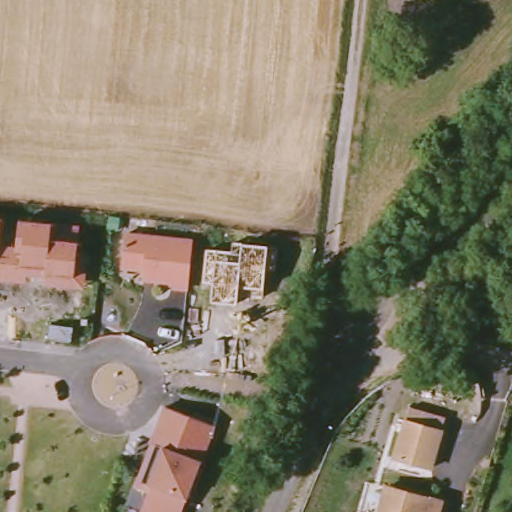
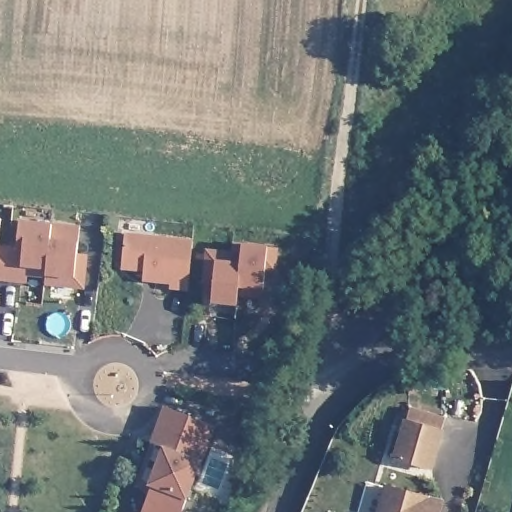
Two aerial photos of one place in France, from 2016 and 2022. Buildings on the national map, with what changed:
unchanged [(1,245),(18,247),(21,219),(49,222),(50,220),(81,225),(78,260),(85,261),(83,290),(43,285),(44,278),(25,276),(24,283),(0,280),(0,219),(3,219),(1,245)]
unchanged [(188,292),(172,290),(172,283),(144,282),(144,272),(123,271),(126,234),(193,241),(188,292)]
unchanged [(229,251),(230,242),(269,247),(264,291),(261,291),(261,296),(249,295),(248,289),(240,288),(238,306),(211,303),(213,284),(201,282),(204,249),(229,251)]
unchanged [(185,512),(144,512),(151,493),(137,487),(166,408),(218,427),(206,462),(185,512)]
unchanged [(444,430),(433,468),(395,457),(405,419),(444,430)]
unchanged [(445,505),(443,512),(384,512),(392,488),(445,505)]

